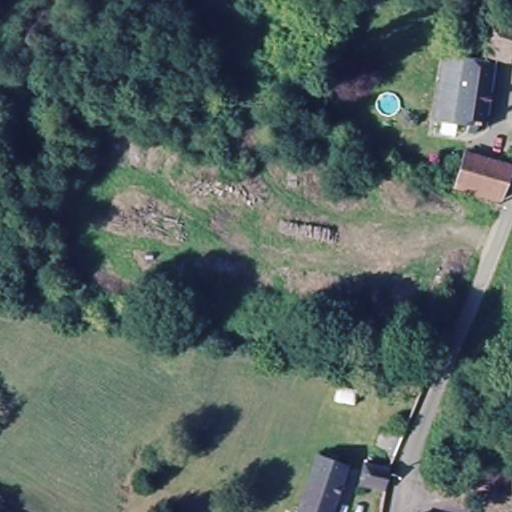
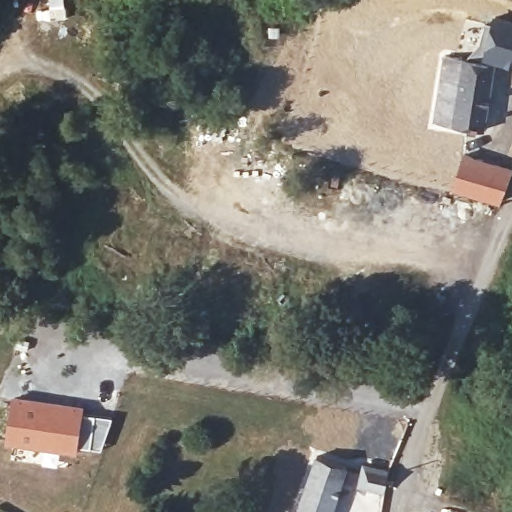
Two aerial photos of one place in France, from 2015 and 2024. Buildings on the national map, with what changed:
unchanged [(486,54),(497,16),(512,20),(512,63),(500,59),(486,54)]
unchanged [(447,55),(496,63),(486,129),(437,120),(447,55)]
unchanged [(467,151),(512,166),(512,170),(499,201),(456,188),(467,151)]
new [(102,450),(78,448),(77,453),(4,440),(12,397),(85,405),(84,411),(113,417),(102,450)]
unchanged [(320,455),(352,466),(336,512),(299,512),(319,455),(320,455)]
unchanged [(385,491),(360,485),(366,461),(367,461),(391,467),(385,491)]

